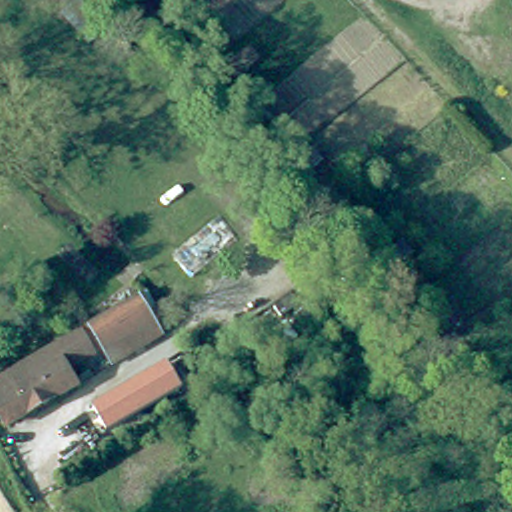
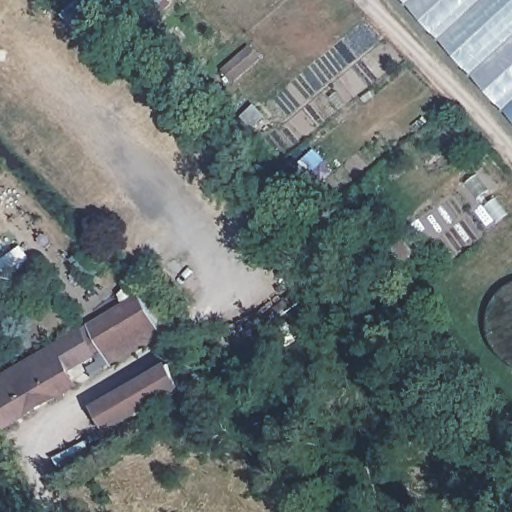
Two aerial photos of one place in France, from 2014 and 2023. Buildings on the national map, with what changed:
new [(506,112),(403,0),(512,0),(512,106),(506,112)]
new [(506,112),(512,106),(512,119),(506,112)]
unchanged [(145,313),(0,398),(0,378),(137,299),(145,313)]
unchanged [(110,365),(100,352),(65,372),(75,387),(10,424),(0,403),(0,398),(145,313),(158,336),(110,365)]
unchanged [(183,392),(108,435),(93,408),(167,365),(183,392)]

